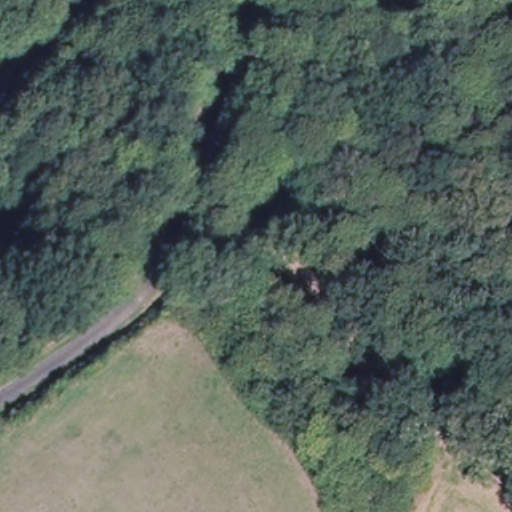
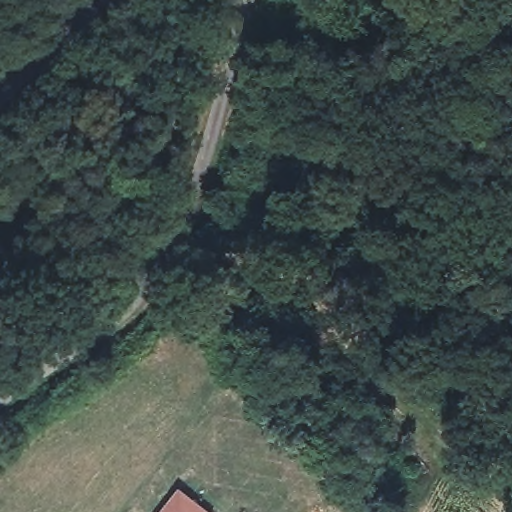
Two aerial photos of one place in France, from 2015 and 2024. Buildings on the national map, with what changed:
new [(213,512),(159,512),(179,486),(213,512)]

